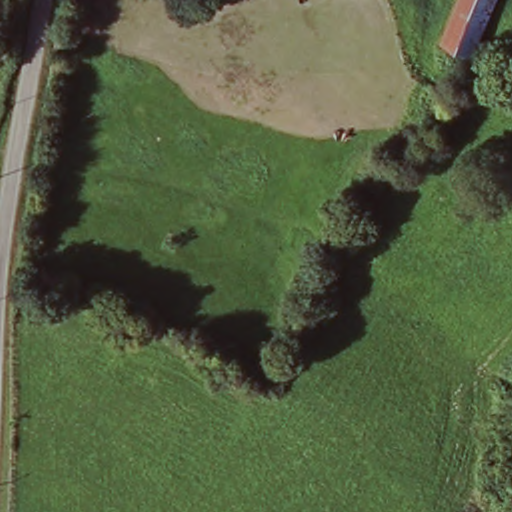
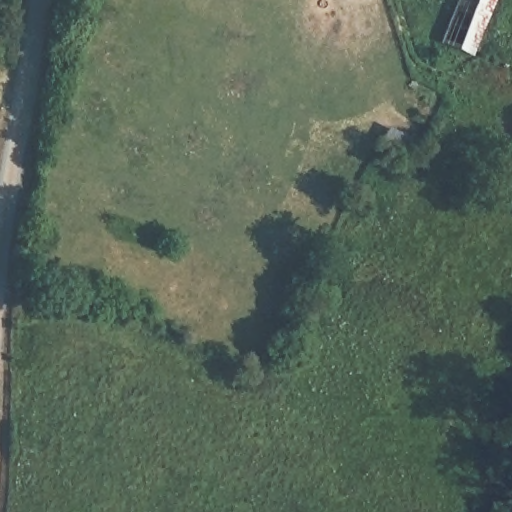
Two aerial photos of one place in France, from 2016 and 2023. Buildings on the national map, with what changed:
unchanged [(471,54),(441,42),(459,0),(495,0),(471,54)]

